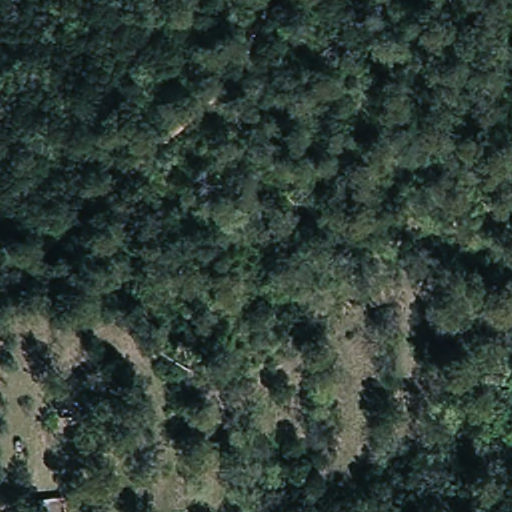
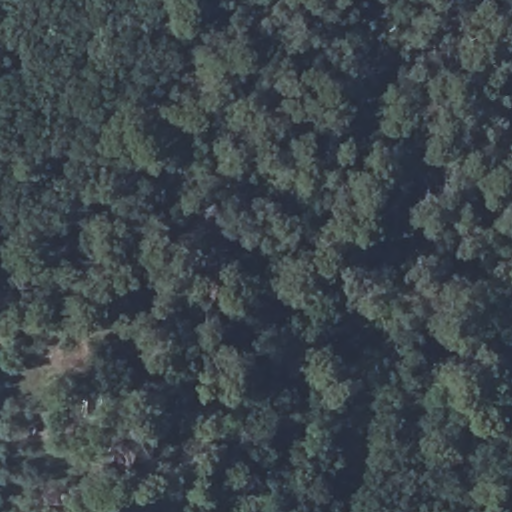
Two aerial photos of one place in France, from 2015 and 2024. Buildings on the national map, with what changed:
unchanged [(106,417),(84,418),(84,409),(65,410),(63,388),(104,384),(106,417)]

